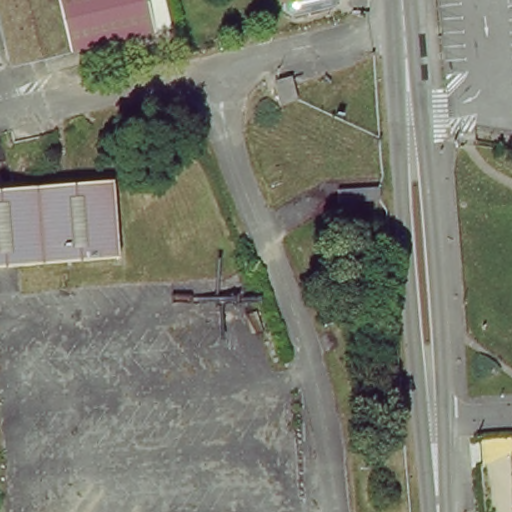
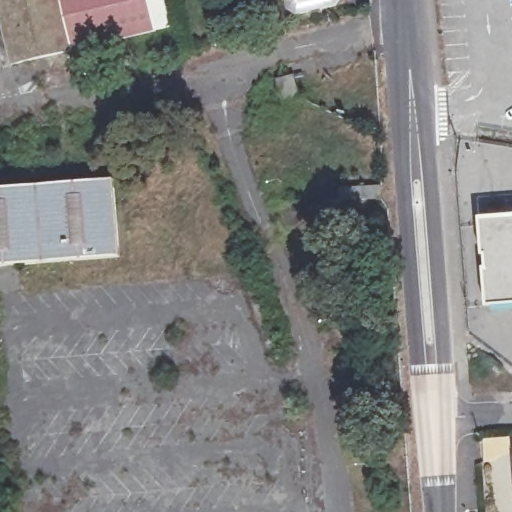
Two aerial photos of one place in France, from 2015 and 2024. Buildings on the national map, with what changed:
unchanged [(161,26),(18,60),(4,0),(154,0),(161,26)]
unchanged [(178,22),(161,26),(154,0),(172,0),(178,22)]
unchanged [(332,1),(293,10),(290,0),(335,0),(332,1)]
unchanged [(283,76),(285,81),(288,96),(271,100),(268,85),(267,80),(283,76)]
unchanged [(18,187),(113,180),(120,256),(30,263),(16,264),(0,265),(0,188),(3,187),(18,187)]
new [(482,298),(478,261),(480,261),(479,246),(477,246),(473,211),(512,207),(512,296),(482,298)]

